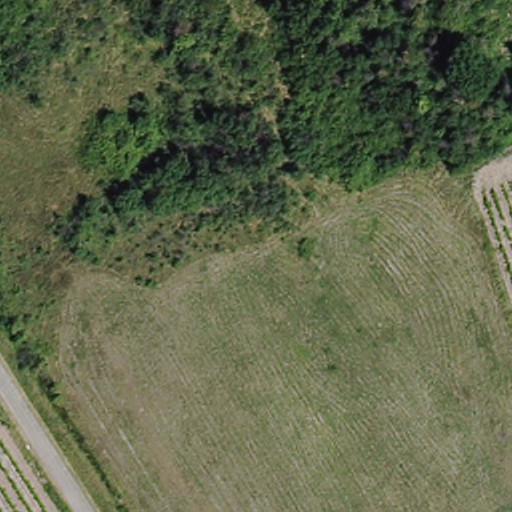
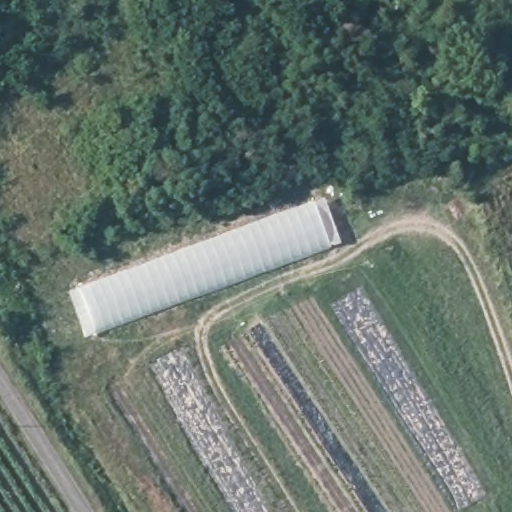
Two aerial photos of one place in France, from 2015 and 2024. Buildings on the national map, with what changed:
new [(265,217),(323,198),(340,242),(277,268),(85,337),(70,291),(265,217)]

